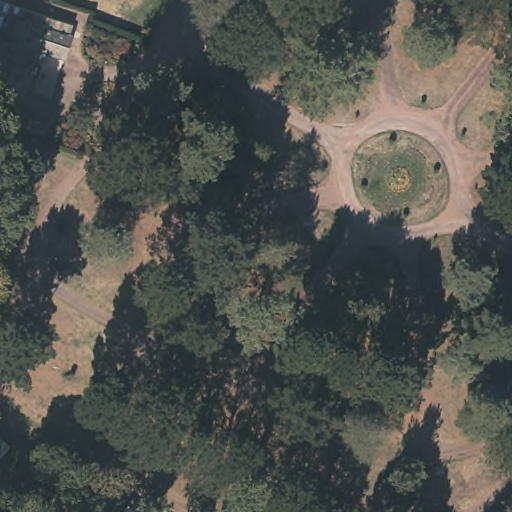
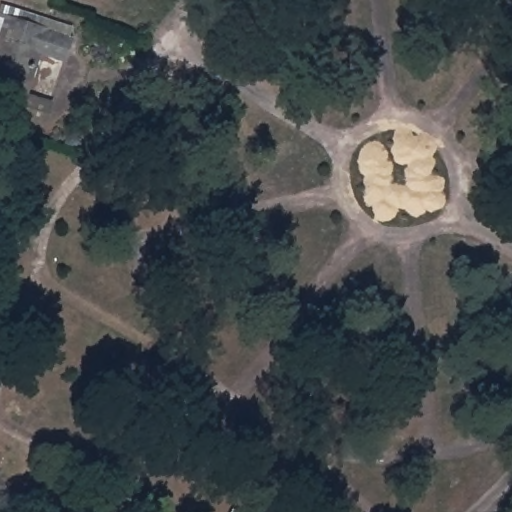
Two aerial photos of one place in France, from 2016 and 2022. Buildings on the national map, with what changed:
unchanged [(31,101),(0,91),(0,8),(3,0),(6,0),(50,16),(31,101)]

